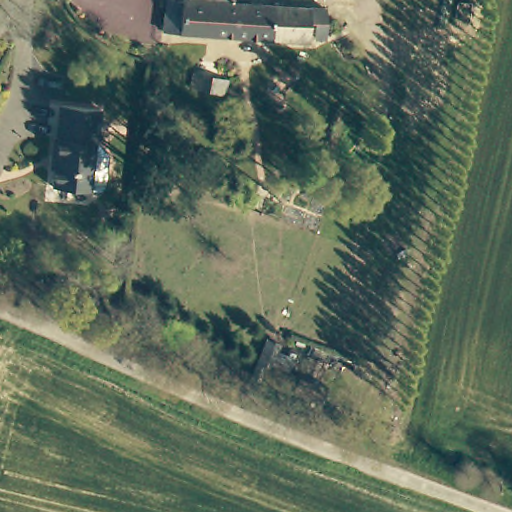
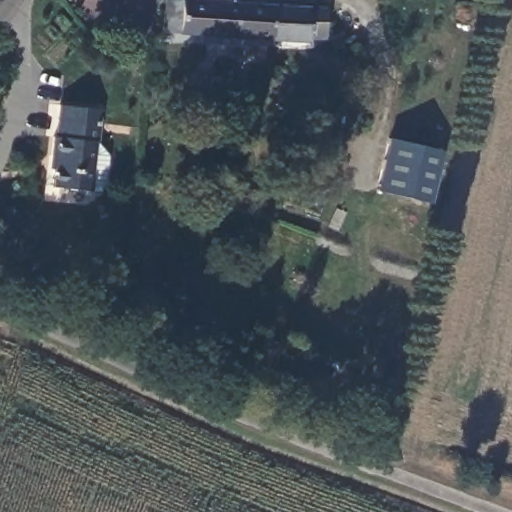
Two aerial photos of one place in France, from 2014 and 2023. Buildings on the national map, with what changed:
unchanged [(232,3),(325,10),(323,34),(312,33),(312,26),(307,25),(305,42),(164,33),(166,2),(186,3),(186,0),(232,0),(232,3)]
unchanged [(200,84),(204,70),(228,77),(224,91),(200,84)]
unchanged [(100,188),(94,194),(84,192),(47,188),(50,159),(47,159),(50,136),(52,136),(55,107),(96,109),(93,143),(102,157),(100,188)]
new [(377,190),(390,138),(440,151),(428,203),(377,190)]
unchanged [(256,374),(261,358),(328,381),(322,397),(256,374)]

